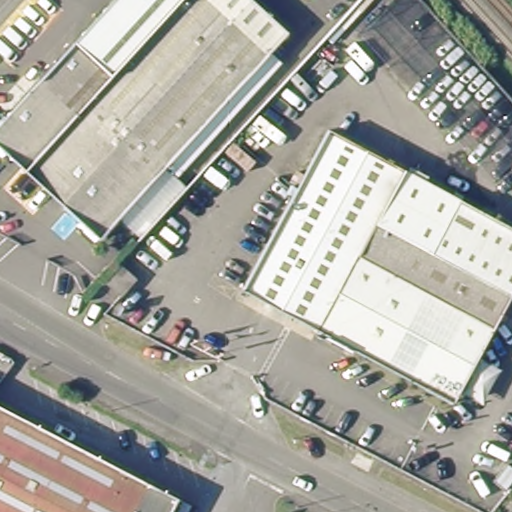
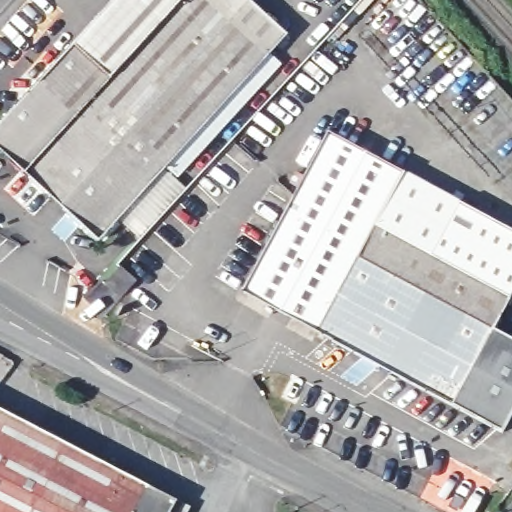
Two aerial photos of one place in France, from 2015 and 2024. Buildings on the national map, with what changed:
unchanged [(0,127),(72,49),(118,0),(247,0),(268,21),(285,35),(266,55),(99,240),(0,148),(0,127)]
unchanged [(330,133),(512,224),(512,302),(461,403),(248,296),(330,133)]
unchanged [(140,278),(123,296),(106,282),(123,263),(140,278)]
new [(512,339),(512,412),(502,431),(461,403),(497,331),(512,339)]
unchanged [(0,413),(5,416),(171,502),(166,512),(0,512),(0,413)]
unchanged [(171,502),(185,509),(183,512),(166,512),(171,502)]

